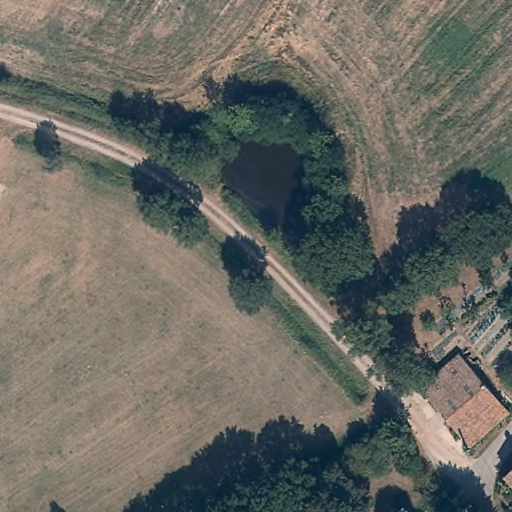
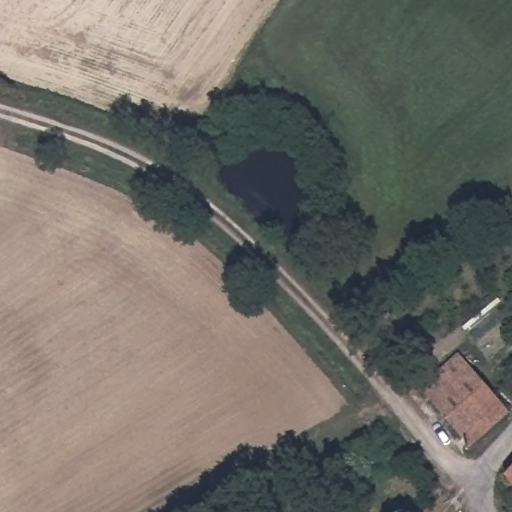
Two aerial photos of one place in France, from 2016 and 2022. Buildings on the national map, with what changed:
unchanged [(430,390),(420,377),(434,367),(442,377),(464,360),(497,403),(458,436),(423,395),(430,390)]
unchanged [(472,452),(458,436),(497,403),(500,408),(509,420),(472,452)]
unchanged [(512,473),(512,481),(508,476),(512,473)]

